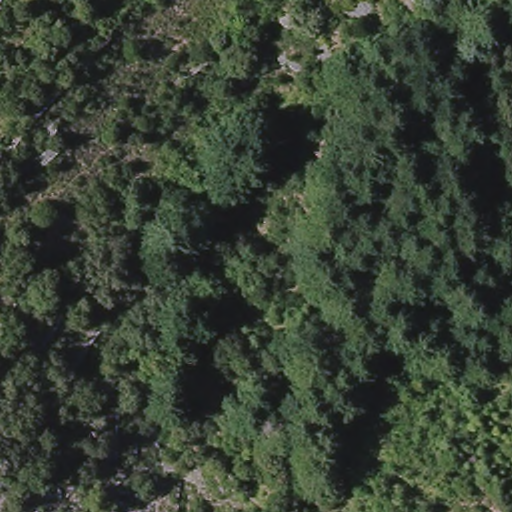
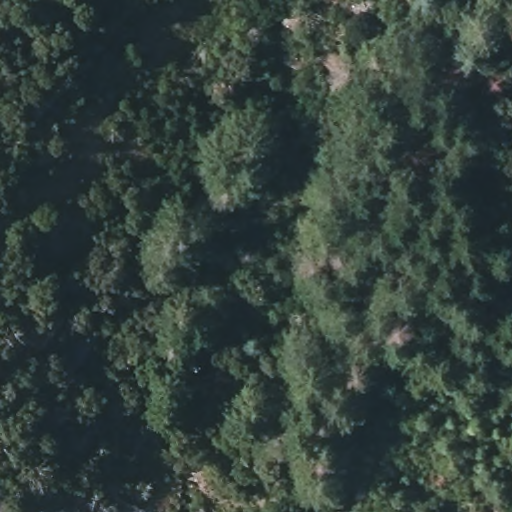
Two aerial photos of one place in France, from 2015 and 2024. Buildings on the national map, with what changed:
unchanged [(336,189),(325,184),(330,170),(342,175),(336,189)]

